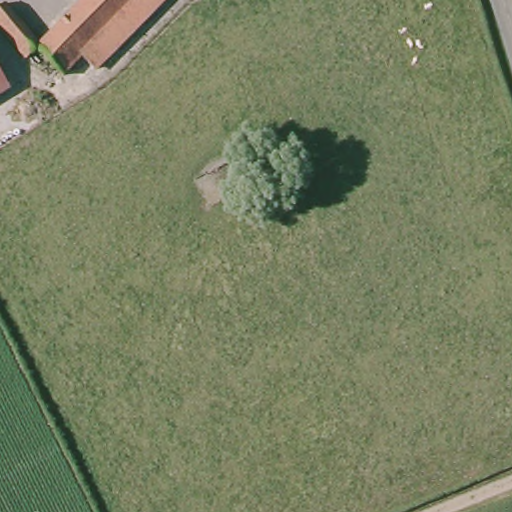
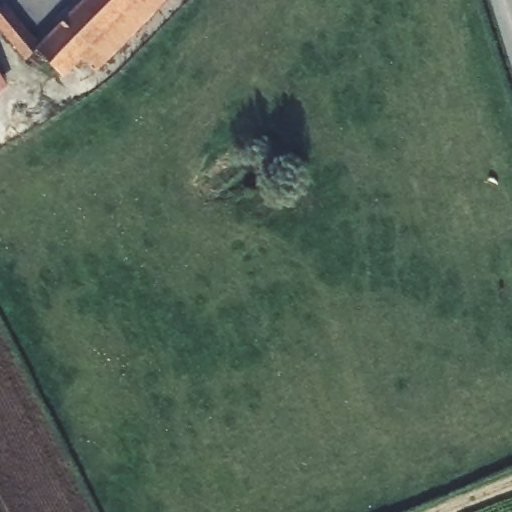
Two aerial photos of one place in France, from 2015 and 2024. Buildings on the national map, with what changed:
unchanged [(39,46),(84,0),(139,0),(90,51),(64,77),(35,51),(27,60),(0,28),(0,7),(4,4),(39,46)]
unchanged [(90,51),(139,0),(164,0),(103,62),(90,51)]
unchanged [(0,91),(0,87),(2,90),(0,91)]

